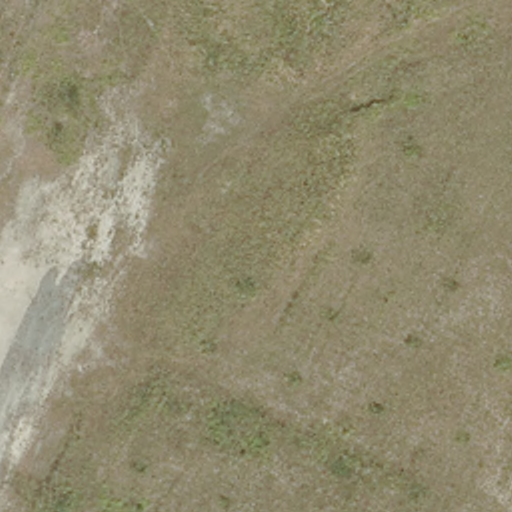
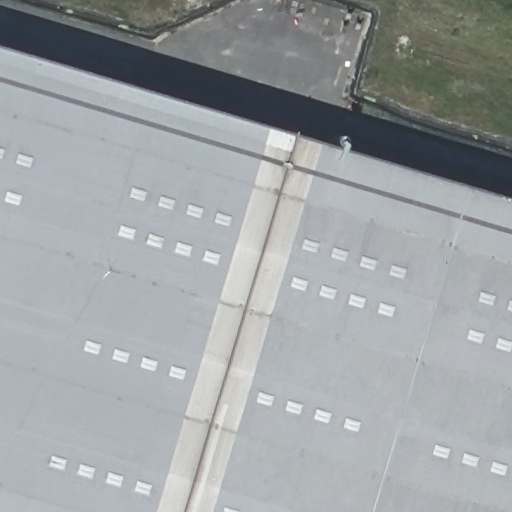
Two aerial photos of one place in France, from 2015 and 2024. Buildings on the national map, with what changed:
new [(0,50),(512,203),(512,512),(0,512),(0,50)]

